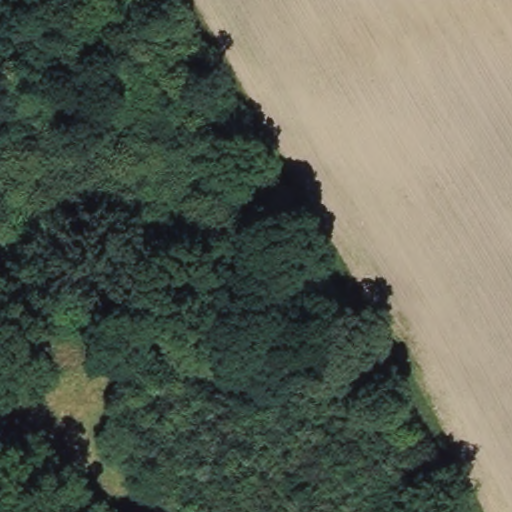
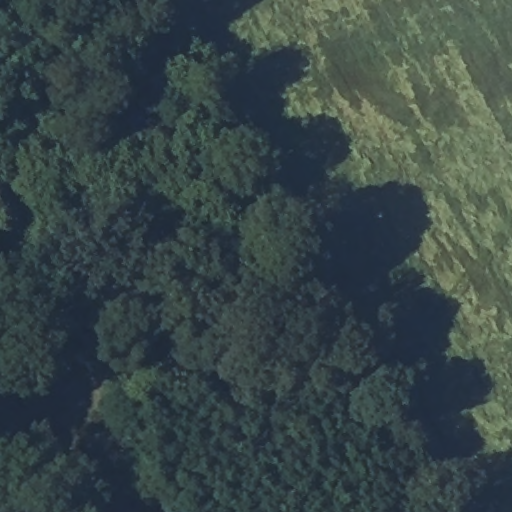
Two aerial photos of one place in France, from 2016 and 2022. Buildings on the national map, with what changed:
[]

